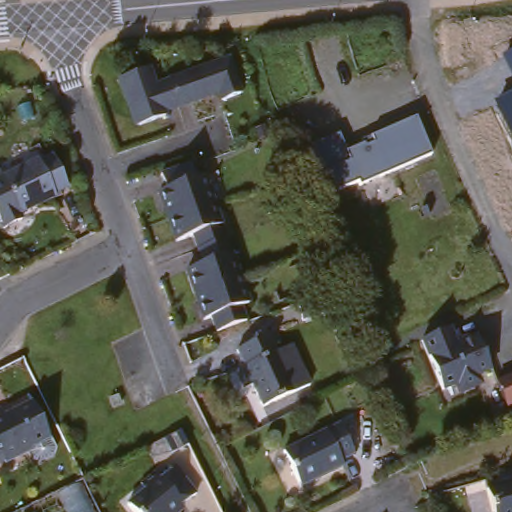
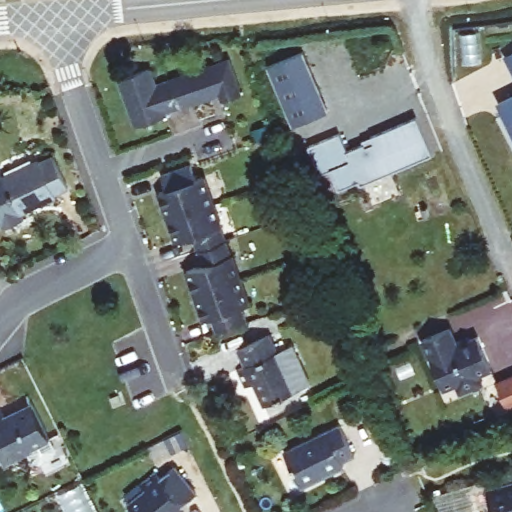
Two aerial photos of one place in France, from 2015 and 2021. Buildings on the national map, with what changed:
new [(291,127),(266,66),(303,52),(328,112),(291,127)]
unchanged [(512,54),(512,72),(504,58),(512,54)]
unchanged [(154,88),(225,61),(238,94),(221,101),(216,90),(160,111),(162,117),(135,127),(124,98),(121,99),(116,86),(148,74),(154,88)]
unchanged [(512,95),(512,135),(496,104),(512,95)]
unchanged [(361,182),(341,191),(333,171),(321,175),(310,148),(341,134),(349,151),(366,144),(368,147),(376,143),(373,137),(418,117),(434,155),(362,186),(361,182)]
unchanged [(46,162),(61,152),(80,185),(29,211),(32,217),(13,226),(0,201),(0,170),(7,167),(10,176),(44,158),(46,162)]
unchanged [(214,335),(209,319),(204,320),(188,274),(201,268),(189,235),(175,242),(156,190),(161,187),(156,174),(188,164),(191,176),(199,174),(248,305),(242,307),(248,324),(214,335)]
unchanged [(343,316),(316,325),(310,306),(334,298),(343,316)]
unchanged [(453,329),(460,346),(481,337),(494,369),(481,375),(484,379),(481,386),(468,391),(461,389),(459,384),(446,390),(426,341),(453,329)]
unchanged [(244,398),(236,401),(224,374),(233,371),(226,355),(260,342),(267,360),(282,354),(298,394),(251,413),(244,398)]
unchanged [(512,376),(512,403),(506,406),(496,383),(512,376)]
unchanged [(47,462),(34,469),(27,467),(23,459),(0,470),(0,418),(26,407),(44,444),(49,456),(47,462)]
unchanged [(349,461),(336,468),(338,472),(294,493),(279,455),(335,429),(349,461)]
unchanged [(121,512),(119,511),(139,496),(134,489),(148,478),(156,483),(166,473),(191,501),(177,511),(178,512),(121,512)]
unchanged [(512,512),(489,512),(484,490),(512,482),(512,512)]

